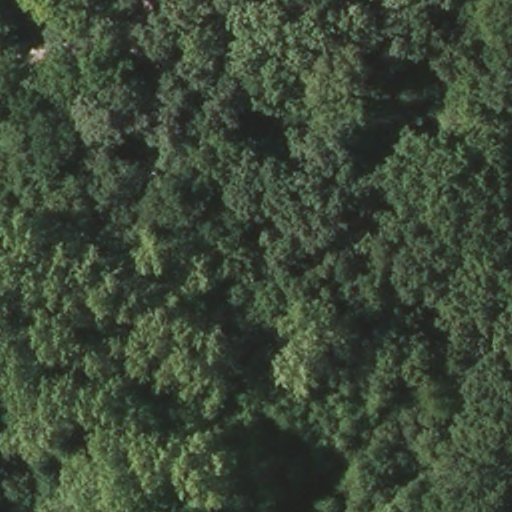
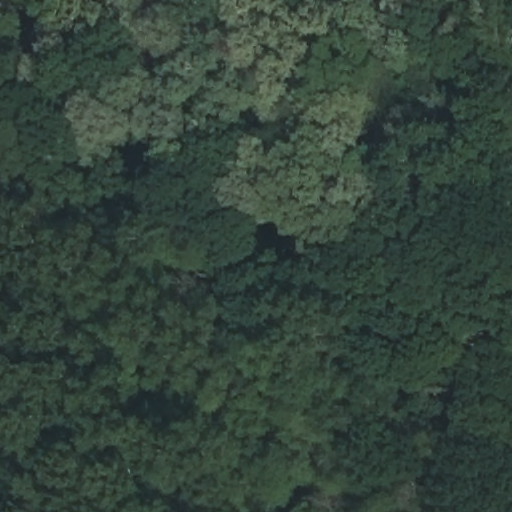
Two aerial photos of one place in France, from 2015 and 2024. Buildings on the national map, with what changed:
unchanged [(358,132),(358,100),(399,99),(404,129),(358,132)]

